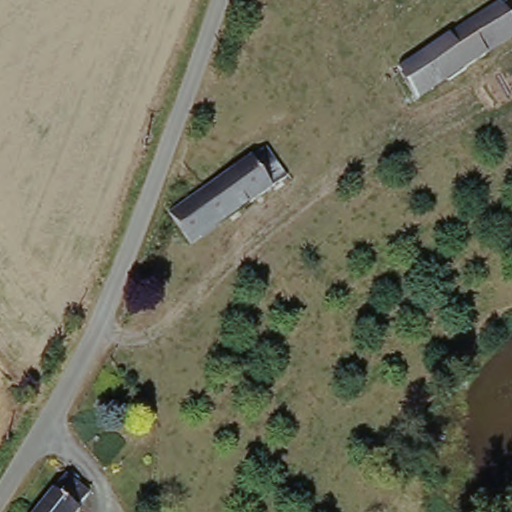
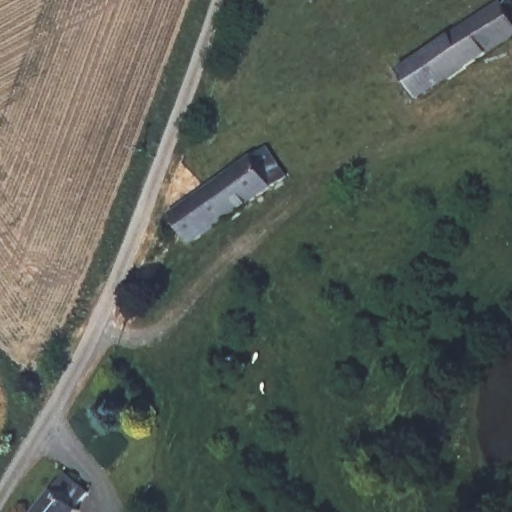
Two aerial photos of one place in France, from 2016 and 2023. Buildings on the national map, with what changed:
unchanged [(512,25),(512,38),(456,75),(438,44),(501,5),(512,25)]
unchanged [(438,44),(456,75),(425,94),(419,98),(399,67),(407,62),(437,43),(438,44)]
unchanged [(278,186),(198,241),(177,209),(258,153),(278,186)]
unchanged [(94,490),(80,505),(85,509),(83,512),(38,512),(71,472),(94,490)]

